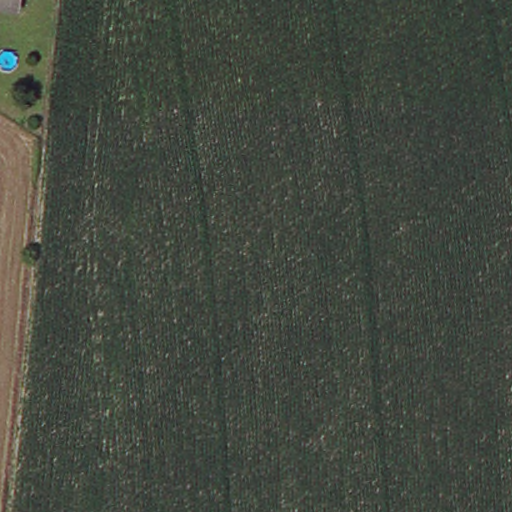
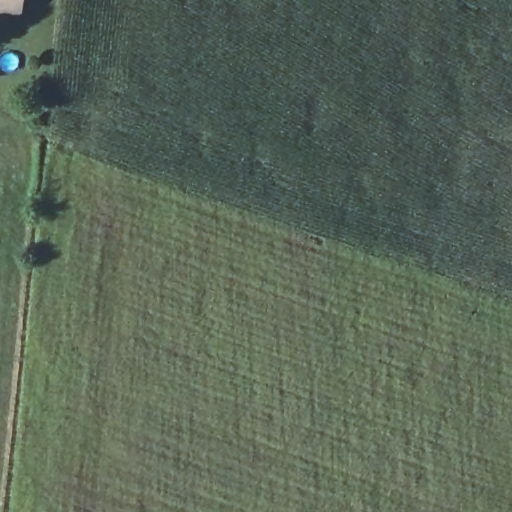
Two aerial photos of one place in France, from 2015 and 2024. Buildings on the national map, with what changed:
unchanged [(23,0),(22,6),(0,5),(0,0),(23,0)]

